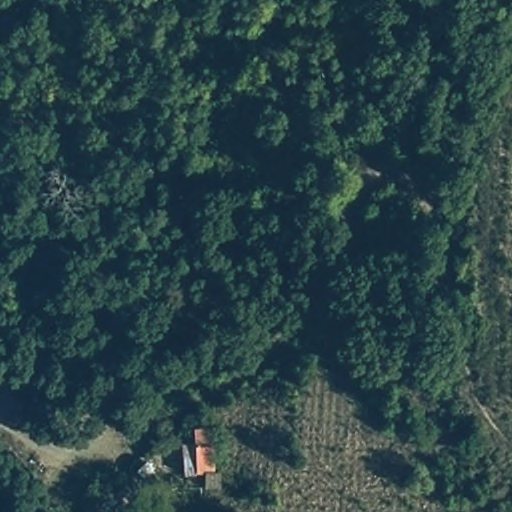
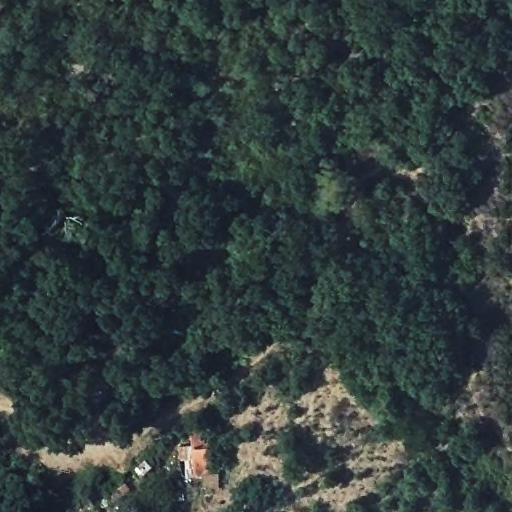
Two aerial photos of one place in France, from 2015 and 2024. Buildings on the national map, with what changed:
unchanged [(193,444),(198,477),(179,482),(176,446),(193,444)]

